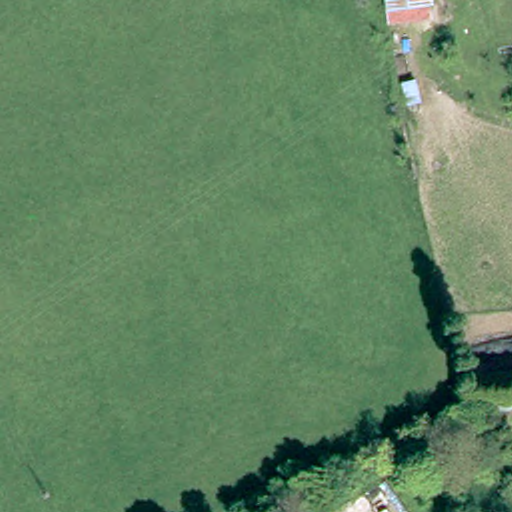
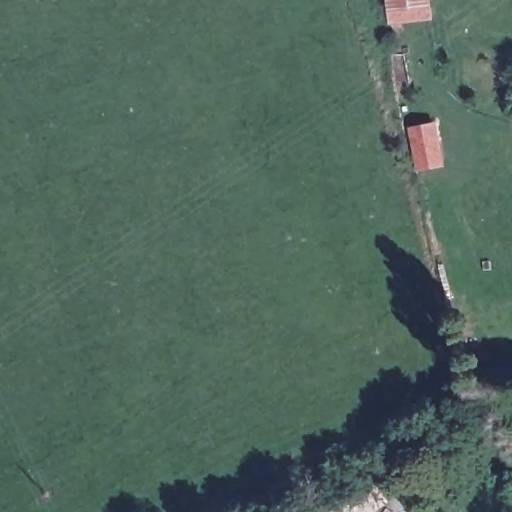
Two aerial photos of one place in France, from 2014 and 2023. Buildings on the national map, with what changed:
unchanged [(392,7),(391,0),(430,0),(430,2),(392,7)]
new [(445,165),(417,169),(410,125),(437,120),(445,165)]

